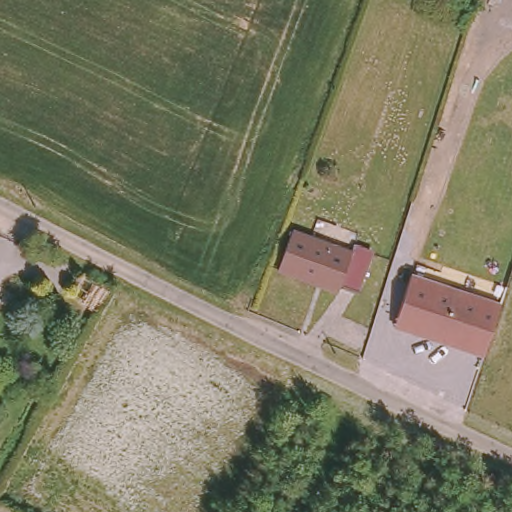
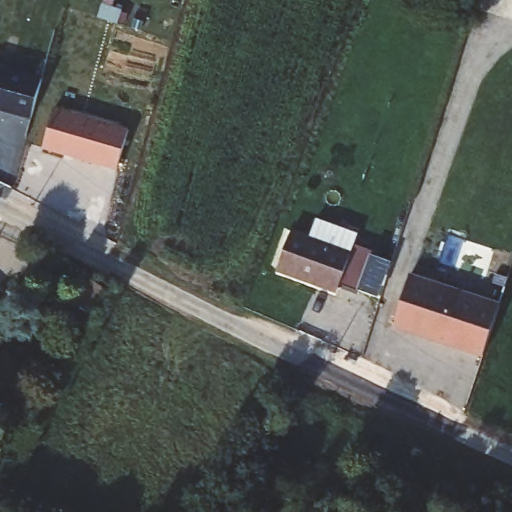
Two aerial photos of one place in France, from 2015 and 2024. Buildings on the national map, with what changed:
new [(0,110),(0,67),(41,78),(31,119),(0,110)]
new [(61,114),(62,111),(128,131),(116,171),(44,150),(55,113),(61,114)]
unchanged [(357,291),(340,284),(338,289),(316,281),(315,284),(277,270),(291,231),(349,253),(352,246),(371,253),(357,291)]
unchanged [(486,355),(394,326),(411,273),(500,302),(486,355)]

